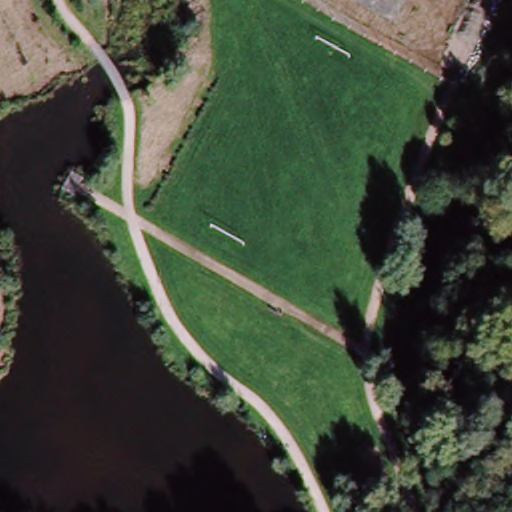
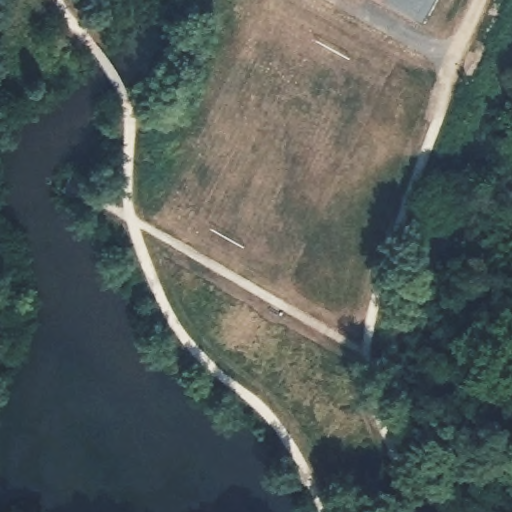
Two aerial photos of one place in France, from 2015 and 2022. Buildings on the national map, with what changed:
new [(421,22),(382,0),(434,0),(421,22)]

